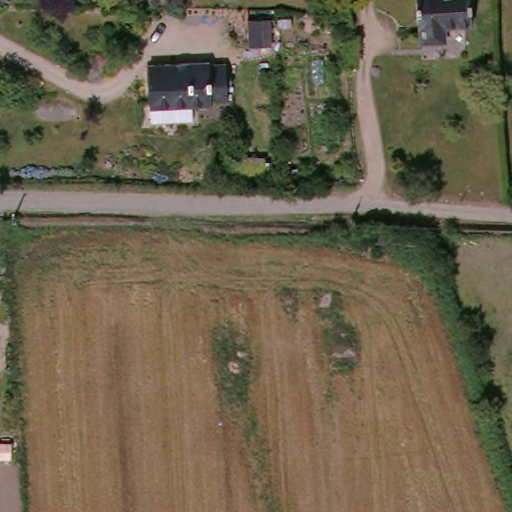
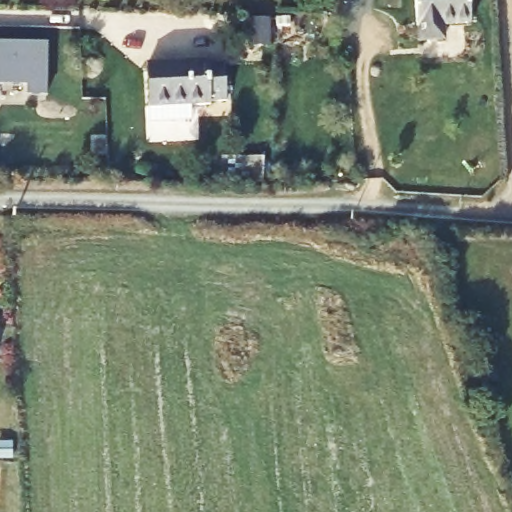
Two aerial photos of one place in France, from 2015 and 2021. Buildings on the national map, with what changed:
unchanged [(471,22),(445,27),(448,39),(421,44),(413,0),(467,0),(471,22)]
new [(47,92),(29,92),(28,82),(0,82),(0,41),(47,40),(47,92)]
unchanged [(192,129),(152,130),(151,107),(150,61),(210,60),(211,65),(229,64),(230,102),(212,103),(212,106),(192,106),(193,129),(192,129)]

